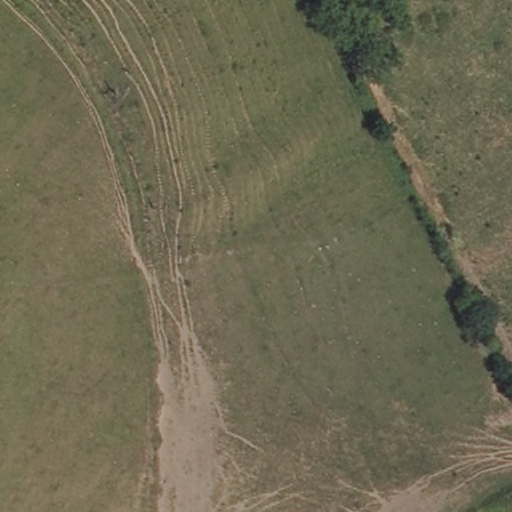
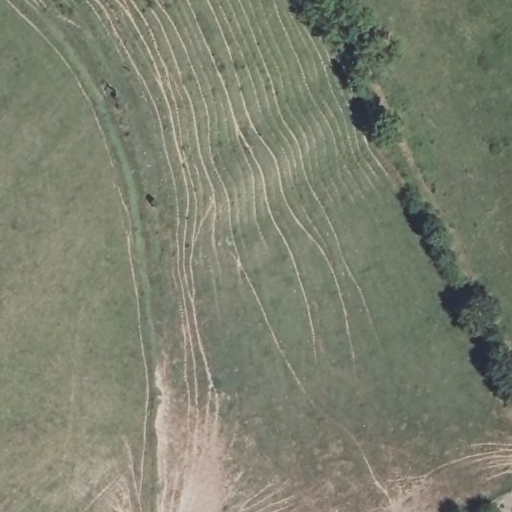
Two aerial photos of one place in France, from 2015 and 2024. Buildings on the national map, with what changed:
[]

